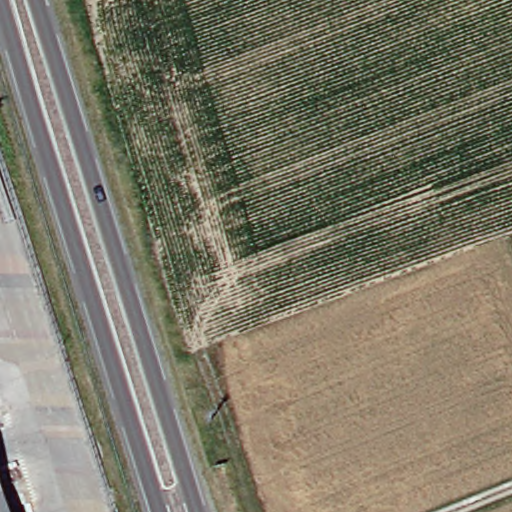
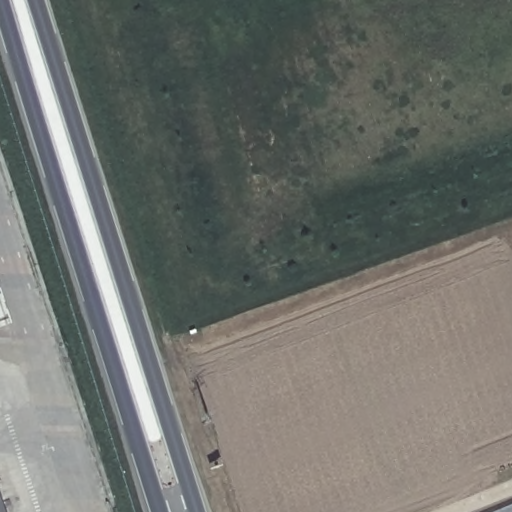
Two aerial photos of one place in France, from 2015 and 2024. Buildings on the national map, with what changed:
new [(512,512),(498,512),(512,506),(512,512)]

